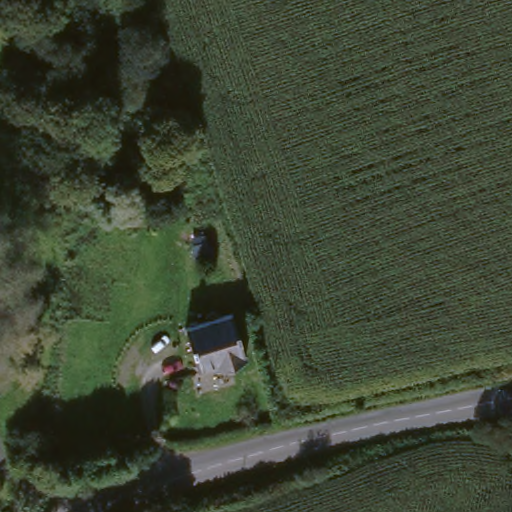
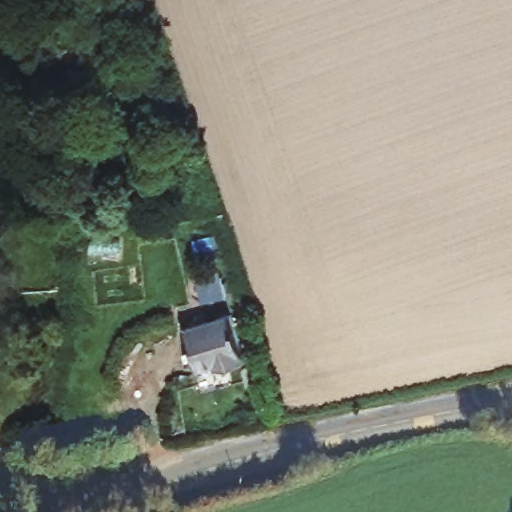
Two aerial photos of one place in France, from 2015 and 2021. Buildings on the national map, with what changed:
unchanged [(219,370),(216,362),(198,367),(189,328),(238,318),(248,363),(219,370)]

